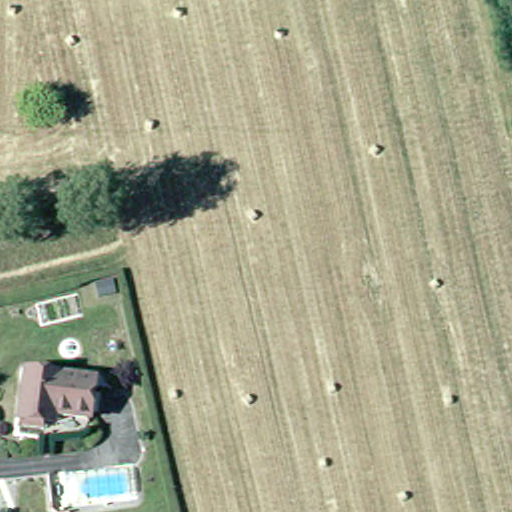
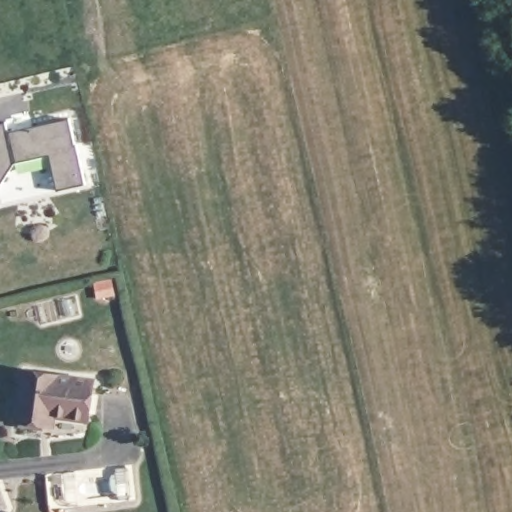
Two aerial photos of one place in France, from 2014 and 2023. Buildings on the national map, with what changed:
new [(16,163),(0,186),(0,123),(7,122),(8,130),(70,118),(86,184),(58,190),(50,155),(16,163)]
unchanged [(48,422),(23,419),(29,370),(97,380),(91,418),(58,413),(56,423),(48,422)]

